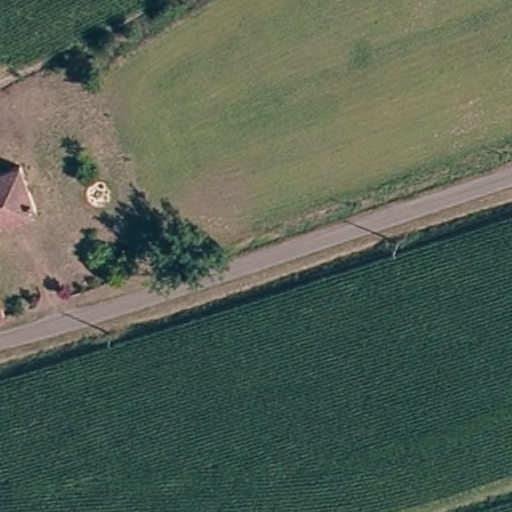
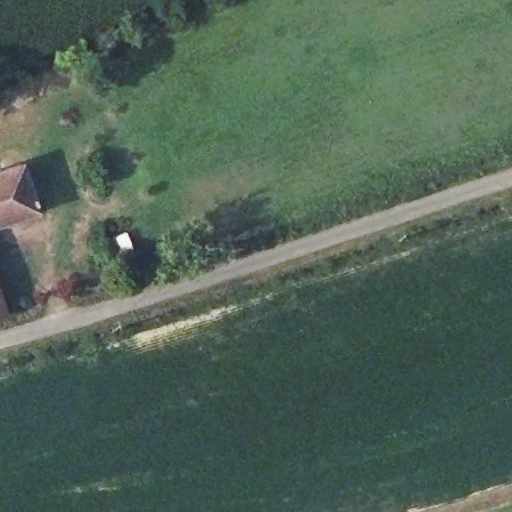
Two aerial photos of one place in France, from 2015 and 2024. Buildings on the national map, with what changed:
unchanged [(0,169),(9,166),(6,157),(19,154),(36,210),(0,222),(0,169)]
unchanged [(127,284),(111,239),(134,231),(148,277),(127,284)]
unchanged [(0,299),(4,310),(0,312),(0,299)]

